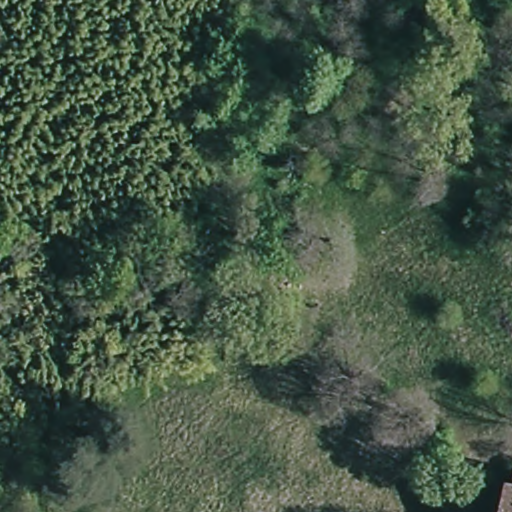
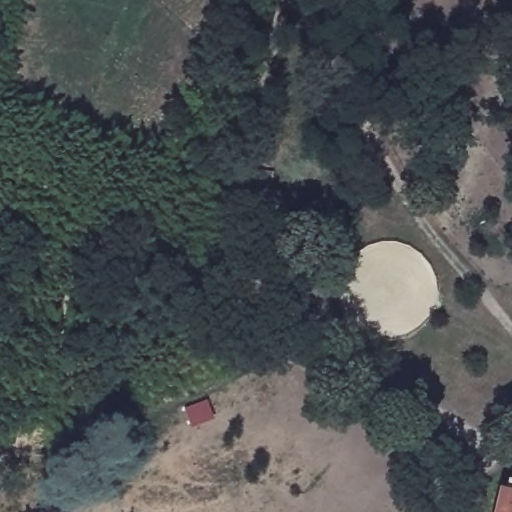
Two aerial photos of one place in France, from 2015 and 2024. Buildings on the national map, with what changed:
unchanged [(505,496),(508,482),(510,469),(512,470),(512,512),(494,512),(499,495),(505,496)]

